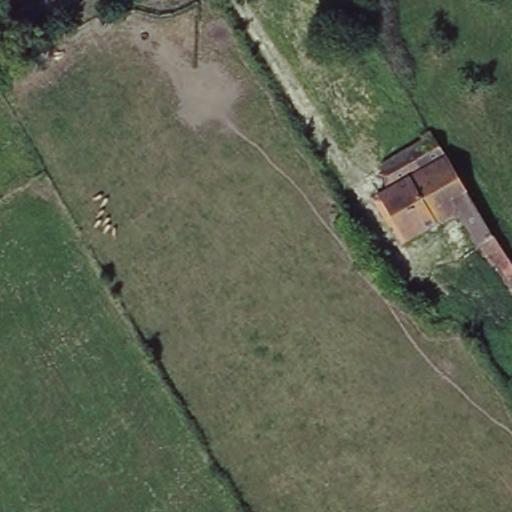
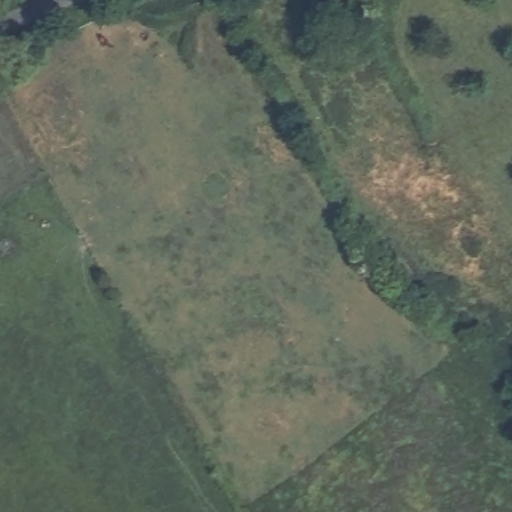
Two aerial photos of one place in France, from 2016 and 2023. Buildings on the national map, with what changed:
demolished [(369,194),(386,184),(372,162),(422,136),(444,157),(473,210),(406,245),(369,194)]

